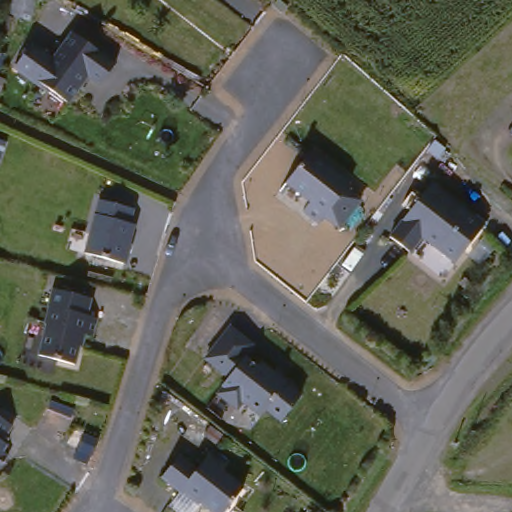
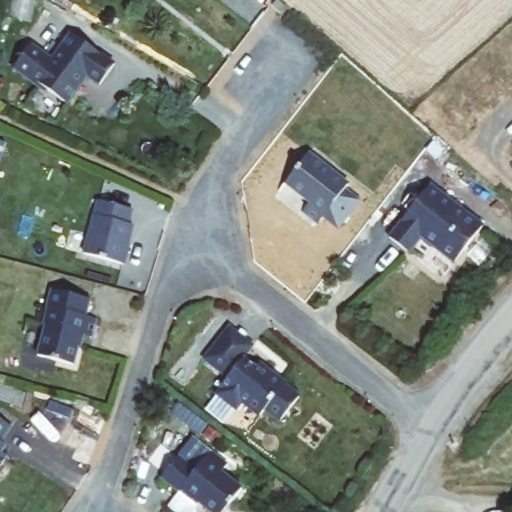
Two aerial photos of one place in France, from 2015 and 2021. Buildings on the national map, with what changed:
unchanged [(34,41),(56,57),(74,30),(118,62),(103,82),(91,73),(70,101),(51,87),(49,89),(17,66),(34,41)]
unchanged [(313,150),(356,180),(352,185),(367,196),(346,224),(331,214),(327,221),(309,207),(317,199),(292,180),(313,150)]
unchanged [(433,180),(486,221),(458,257),(426,232),(412,247),(392,232),(433,180)]
unchanged [(102,196),(136,205),(132,220),(137,221),(127,260),(88,250),(102,196)]
unchanged [(49,319),(53,301),(56,282),(95,293),(91,311),(101,313),(96,331),(86,328),(78,359),(41,350),(49,319)]
unchanged [(229,322),(252,342),(243,353),(256,363),(259,360),(284,379),(285,382),(299,393),(280,417),(265,406),(259,412),(242,398),(236,405),(218,391),(224,383),(228,373),(204,356),(229,322)]
unchanged [(4,434),(7,446),(11,448),(0,465),(0,410),(14,420),(4,434)]
unchanged [(201,463),(216,446),(233,460),(226,467),(247,483),(224,512),(223,512),(204,497),(185,486),(166,472),(183,450),(201,463)]

